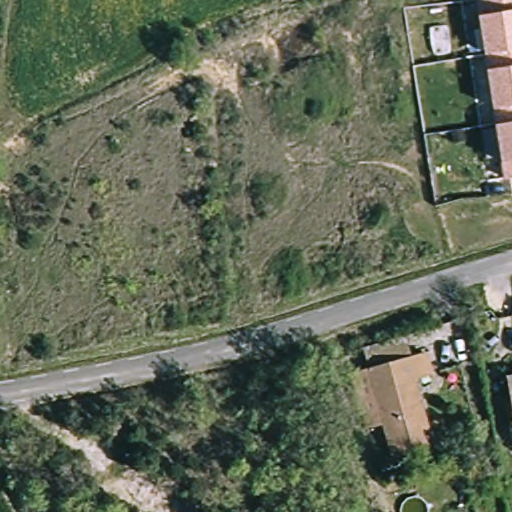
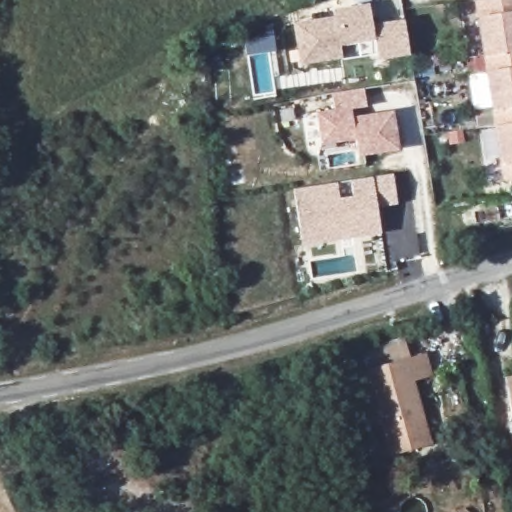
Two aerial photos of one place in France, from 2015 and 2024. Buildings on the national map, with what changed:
unchanged [(512,54),(485,58),(476,3),(494,0),(512,0),(512,54)]
new [(378,60),(375,39),(341,45),(342,57),(300,64),(292,22),(334,16),(333,9),(369,2),(372,25),(404,19),(410,54),(378,60)]
unchanged [(485,58),(512,54),(512,125),(495,127),(485,58)]
new [(367,107),(351,110),(353,118),(395,111),(401,149),(357,156),(354,140),(321,145),(315,112),(335,109),(331,94),(363,89),(367,107)]
unchanged [(495,127),(512,125),(512,181),(504,182),(495,127)]
new [(395,205),(377,207),(381,232),(302,246),(293,189),(390,174),(395,205)]
unchanged [(406,357),(419,353),(425,375),(413,380),(432,442),(389,455),(356,350),(400,337),(406,357)]
unchanged [(512,381),(512,432),(501,383),(512,381)]
unchanged [(53,463),(70,463),(70,473),(53,473),(53,463)]

